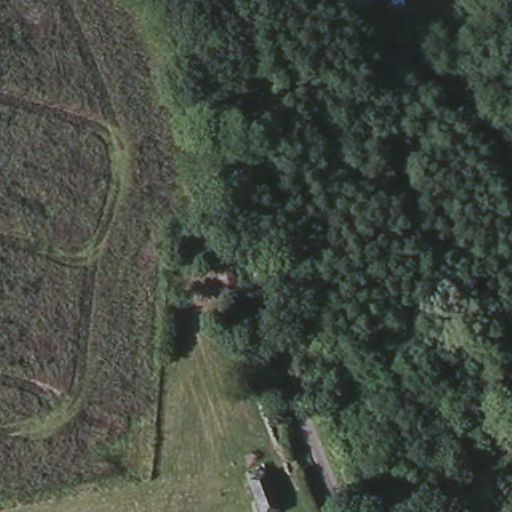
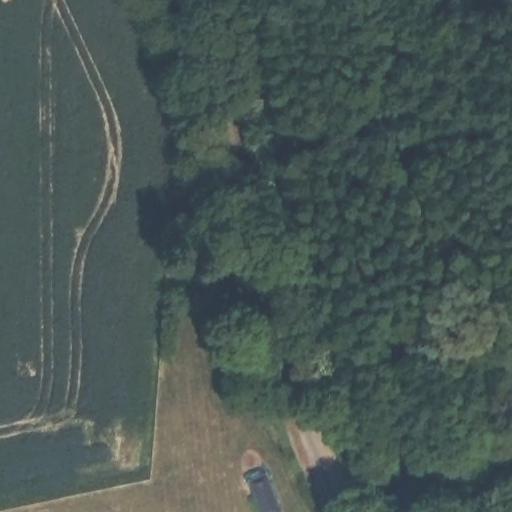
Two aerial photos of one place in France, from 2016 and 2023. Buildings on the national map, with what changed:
unchanged [(278,459),(285,503),(266,507),(258,464),(278,459)]

